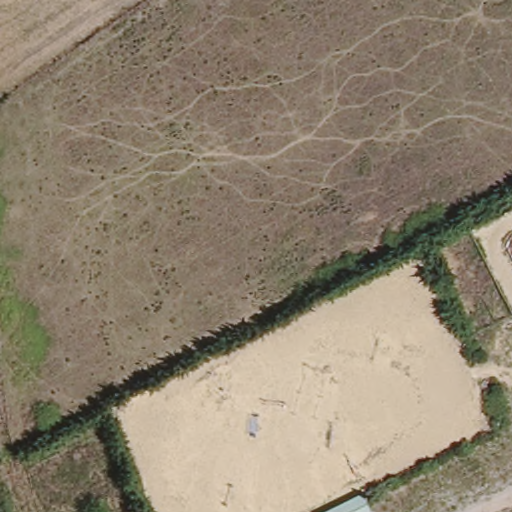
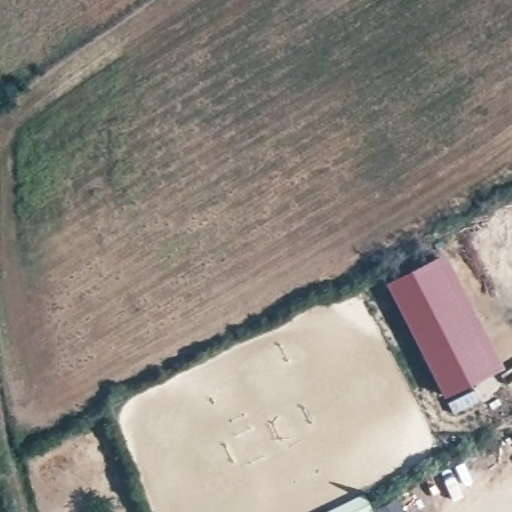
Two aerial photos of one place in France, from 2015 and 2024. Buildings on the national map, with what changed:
new [(444,252),(503,366),(481,377),(462,389),(445,398),(444,398),(383,282),(444,252)]
unchanged [(371,512),(322,512),(363,494),(371,512)]
new [(403,512),(377,512),(397,501),(403,512)]

